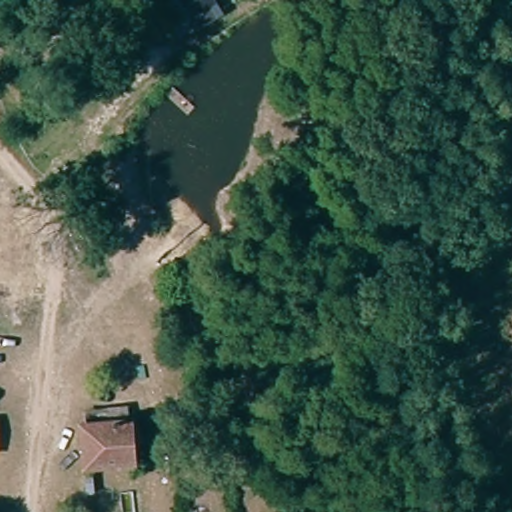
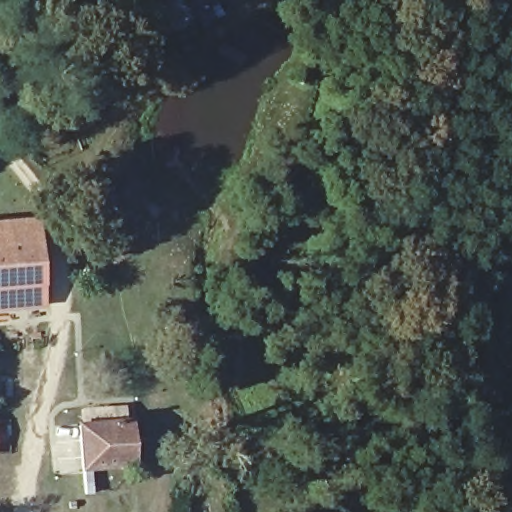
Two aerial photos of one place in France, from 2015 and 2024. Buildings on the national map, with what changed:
unchanged [(174,0),(218,0),(224,7),(179,40),(160,11),(174,0)]
new [(0,219),(40,215),(47,305),(0,310),(0,219)]
demolished [(0,289),(0,227),(31,225),(37,285),(0,289)]
unchanged [(131,462),(82,466),(78,422),(127,418),(131,462)]

